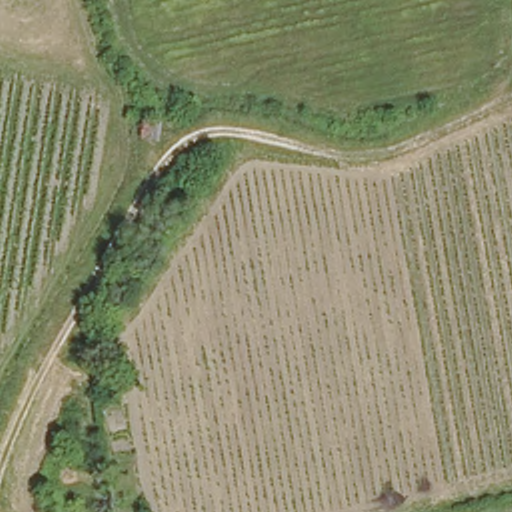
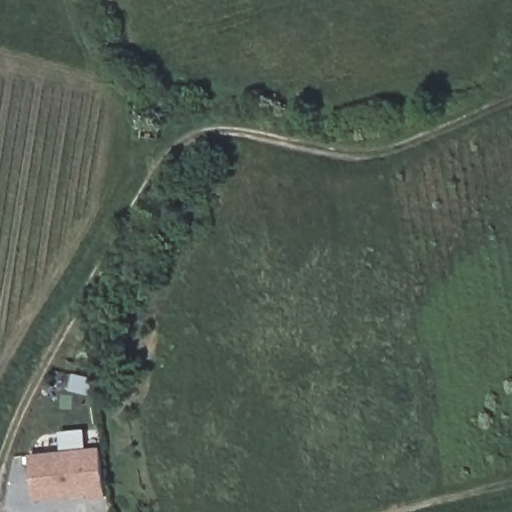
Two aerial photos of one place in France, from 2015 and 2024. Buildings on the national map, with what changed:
unchanged [(99,360),(66,351),(71,343),(101,353),(99,360)]
new [(95,452),(99,498),(85,500),(84,495),(32,499),(29,457),(95,452)]

